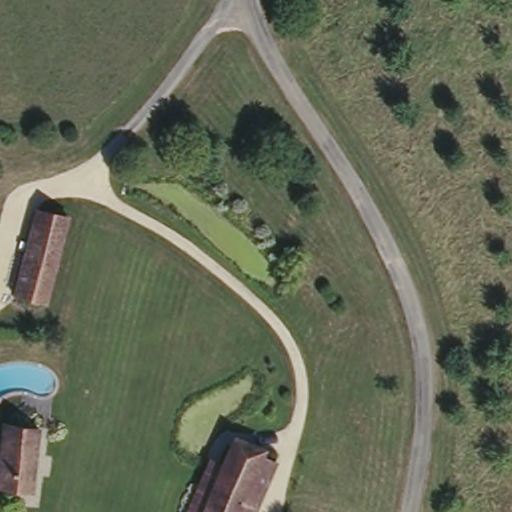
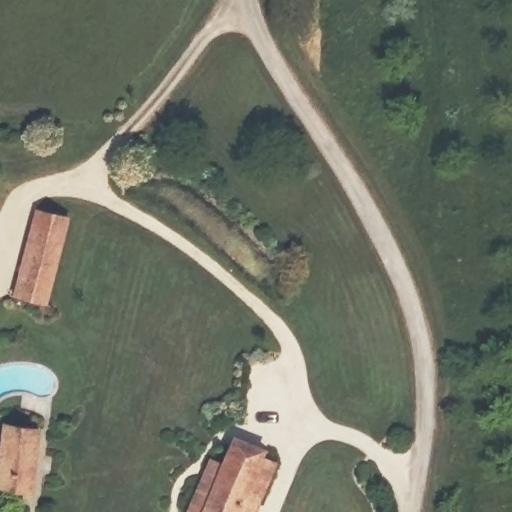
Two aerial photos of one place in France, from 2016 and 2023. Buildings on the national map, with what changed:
unchanged [(46,305),(16,297),(38,210),(72,218),(46,305)]
unchanged [(0,491),(0,487),(9,428),(44,434),(35,497),(0,491)]
unchanged [(236,435),(273,449),(270,459),(278,463),(259,512),(206,512),(226,461),(236,435)]
unchanged [(206,512),(191,512),(212,455),(226,461),(206,512)]

